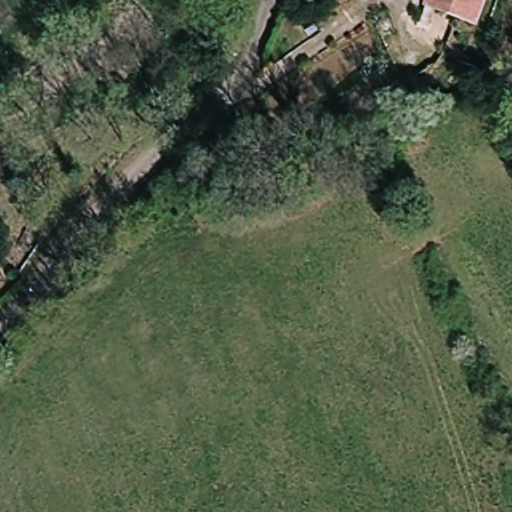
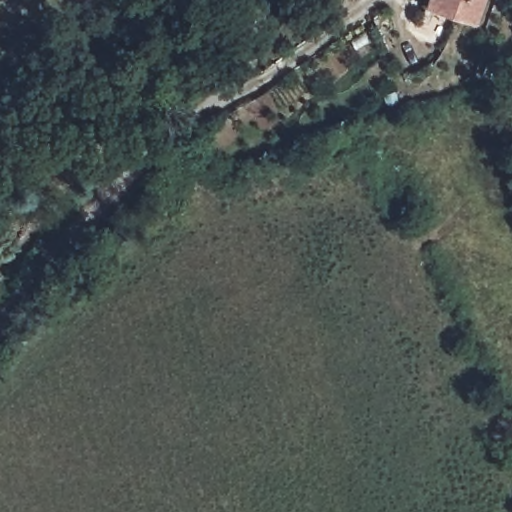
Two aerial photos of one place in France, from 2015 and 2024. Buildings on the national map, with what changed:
unchanged [(424,7),(427,0),(489,0),(481,24),(424,7)]

